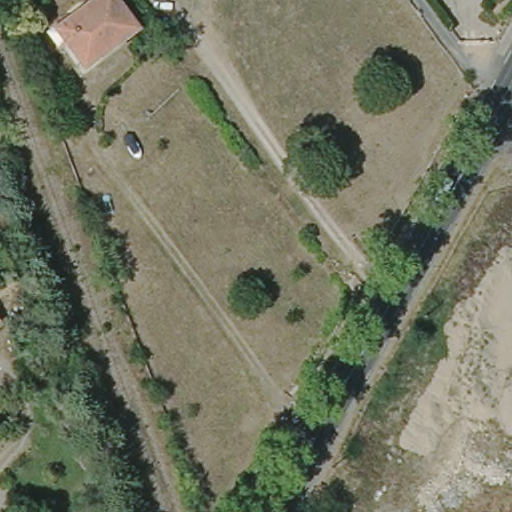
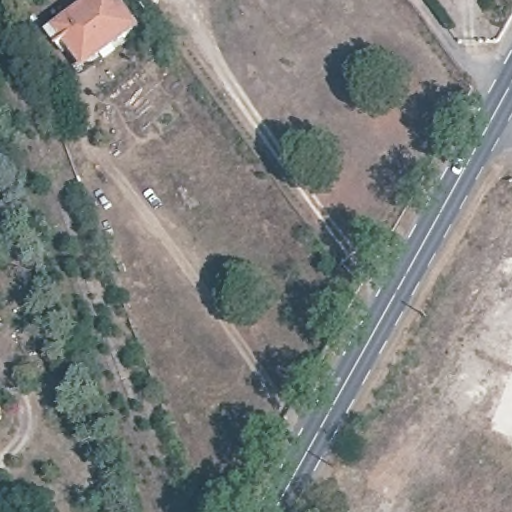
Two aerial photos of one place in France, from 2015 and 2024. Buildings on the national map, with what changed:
unchanged [(86,65),(74,48),(69,51),(57,33),(103,0),(126,0),(148,31),(102,63),(90,71),(86,65)]
unchanged [(8,320),(0,325),(0,308),(8,320)]

